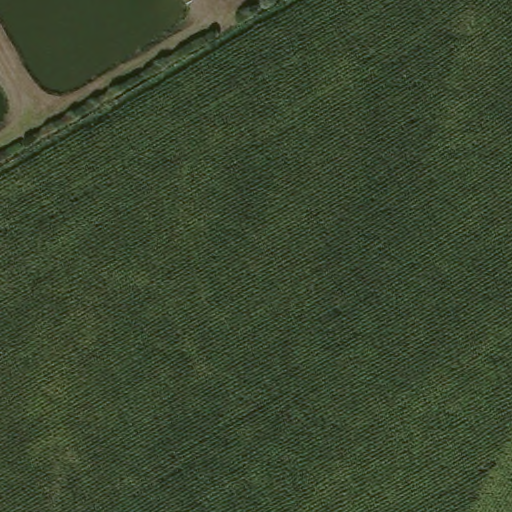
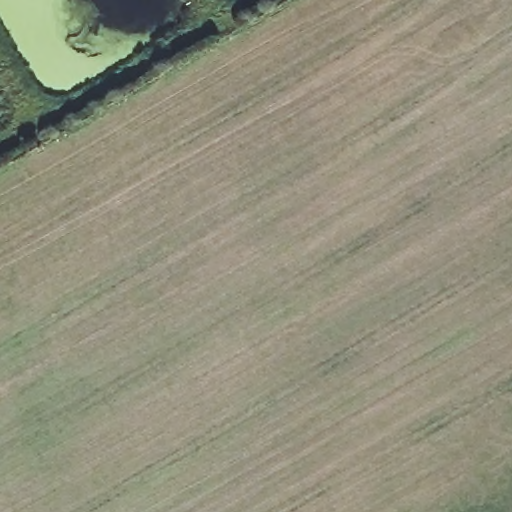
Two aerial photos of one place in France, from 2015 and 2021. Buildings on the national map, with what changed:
[]

